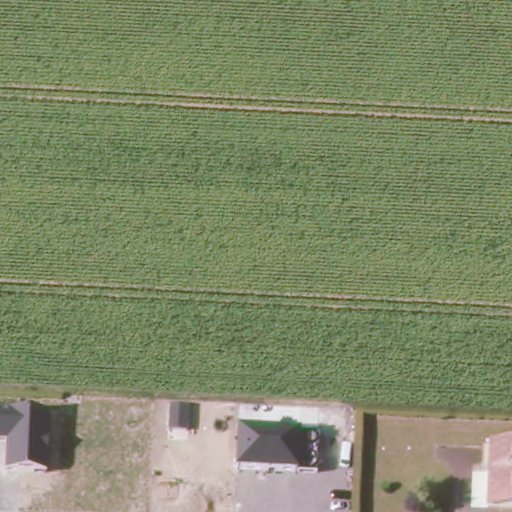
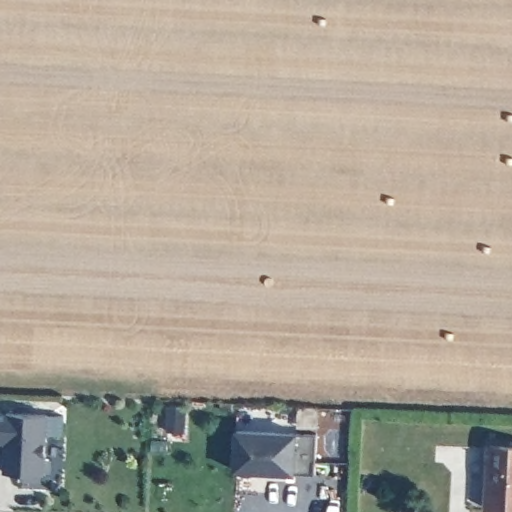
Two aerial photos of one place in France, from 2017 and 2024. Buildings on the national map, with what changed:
unchanged [(0,442),(0,411),(48,414),(45,475),(4,471),(6,442),(0,442)]
unchanged [(298,474),(234,471),(236,428),(298,431),(318,434),(315,472),(298,474)]
unchanged [(483,510),(485,447),(512,448),(512,512),(483,510)]

